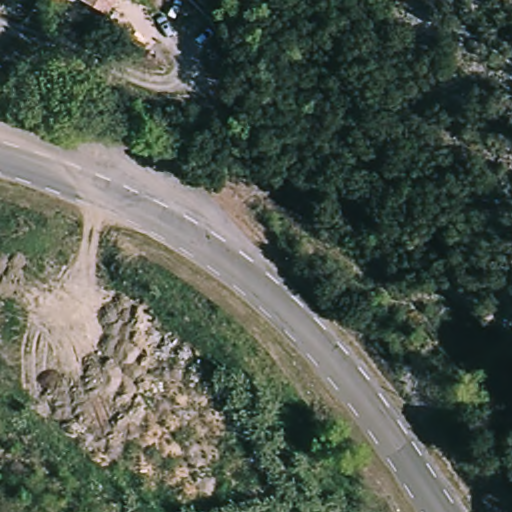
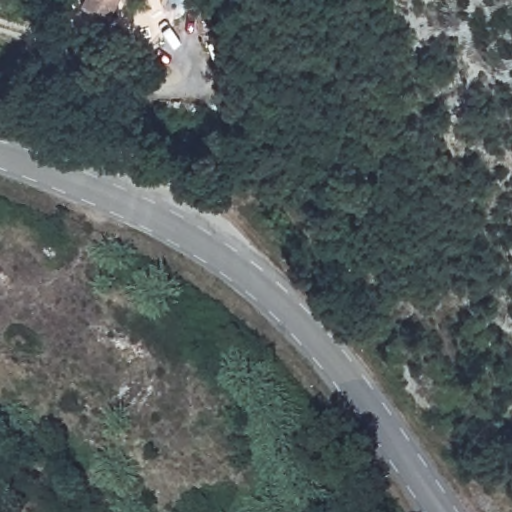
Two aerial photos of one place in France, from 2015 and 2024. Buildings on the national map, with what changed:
unchanged [(85,7),(89,0),(119,0),(107,20),(85,7)]

